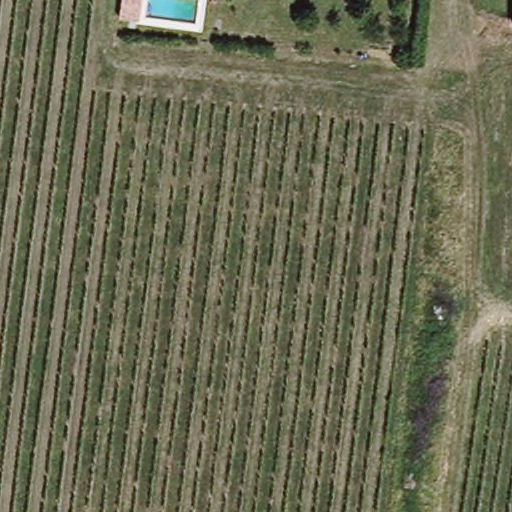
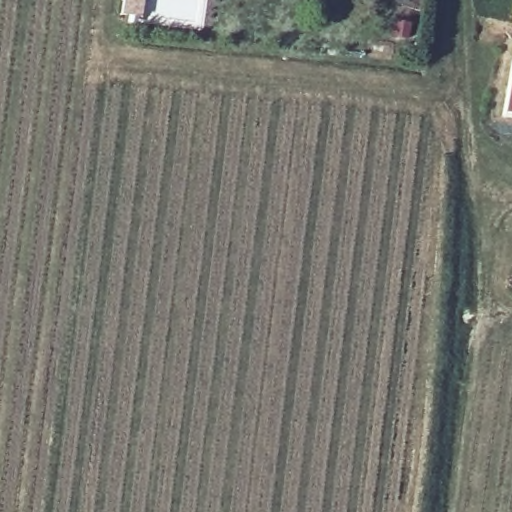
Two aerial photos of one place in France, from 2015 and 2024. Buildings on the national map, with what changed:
new [(503,113),(512,52),(512,114),(503,113)]

